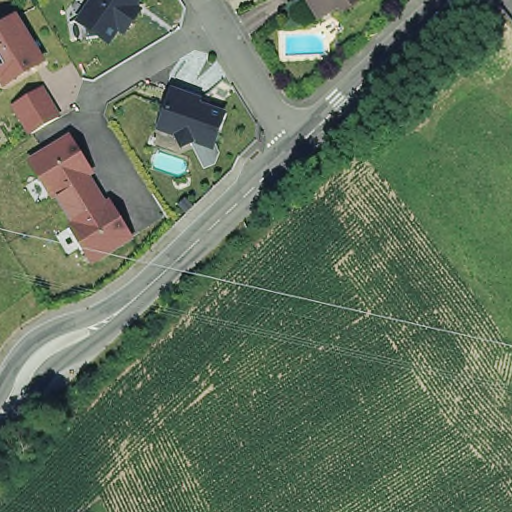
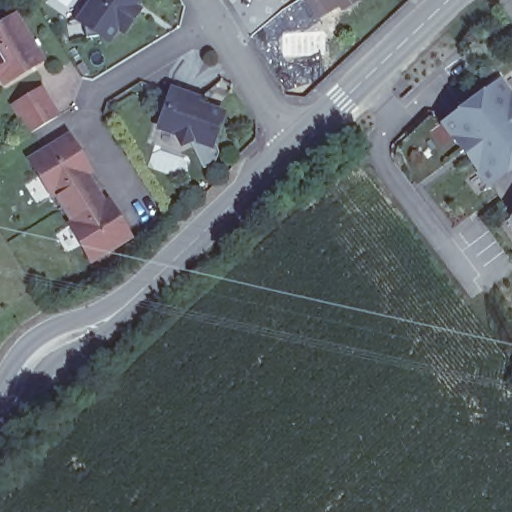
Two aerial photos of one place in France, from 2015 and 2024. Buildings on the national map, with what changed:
unchanged [(147,0),(113,49),(75,20),(88,0),(147,0)]
unchanged [(335,0),(313,14),(305,0),(335,0)]
unchanged [(50,61),(6,88),(0,79),(0,23),(16,13),(50,61)]
new [(512,94),(512,169),(488,187),(438,124),(500,78),(512,94)]
unchanged [(45,89),(62,116),(30,134),(11,106),(45,89)]
unchanged [(230,108),(216,151),(195,145),(182,151),(176,139),(158,133),(173,90),(230,108)]
unchanged [(73,135),(136,237),(93,264),(30,161),(73,135)]
new [(508,217),(512,214),(512,222),(508,217)]

